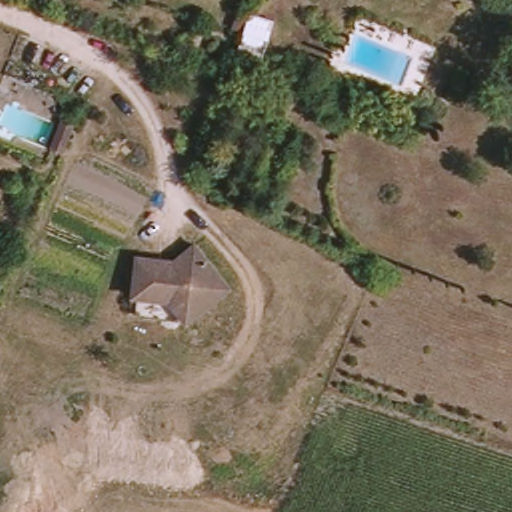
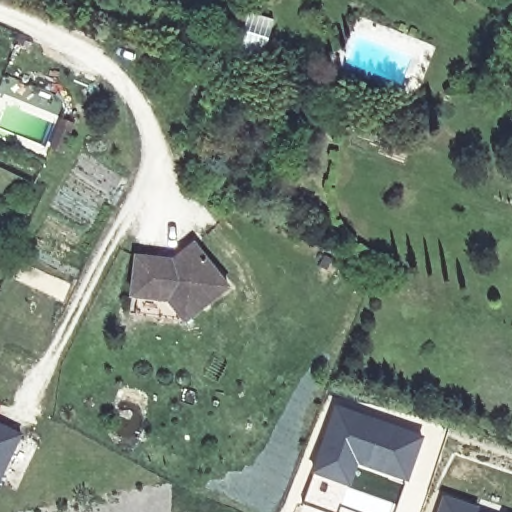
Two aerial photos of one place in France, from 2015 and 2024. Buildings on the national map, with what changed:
unchanged [(267,61),(240,52),(246,33),(236,30),(241,15),(250,18),(251,15),(279,26),(267,61)]
unchanged [(132,260),(149,262),(158,273),(190,248),(224,290),(180,325),(163,304),(128,299),(132,260)]
new [(335,405),(420,436),(408,468),(387,460),(383,470),(354,459),(334,512),(327,512),(299,502),(335,405)]
new [(0,464),(0,428),(14,435),(0,464)]
new [(346,485),(395,502),(391,512),(362,512),(338,504),(346,485)]
new [(442,498),(475,509),(473,512),(436,512),(442,498)]

